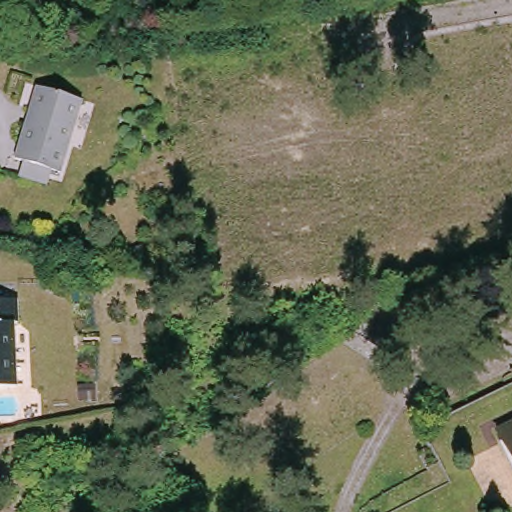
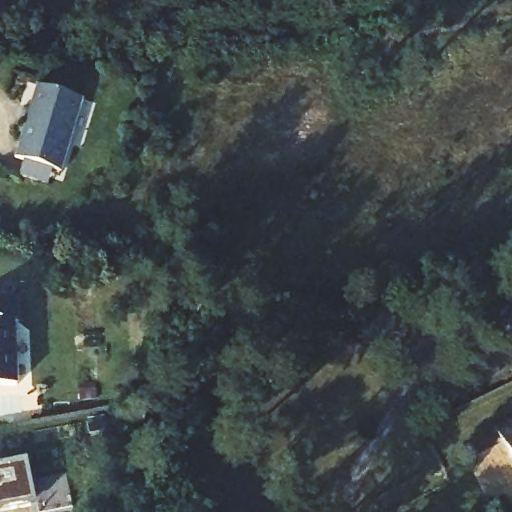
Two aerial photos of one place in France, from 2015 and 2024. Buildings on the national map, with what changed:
unchanged [(15,164),(19,150),(10,148),(20,112),(28,114),(40,75),(82,88),(60,162),(48,159),(45,172),(15,164)]
unchanged [(18,294),(20,320),(11,321),(15,384),(0,385),(0,295),(18,294)]
unchanged [(353,324),(373,298),(410,324),(391,351),(353,324)]
unchanged [(512,418),(512,468),(494,426),(512,418)]
new [(35,465),(39,487),(31,488),(35,510),(27,512),(0,512),(0,471),(35,465)]

